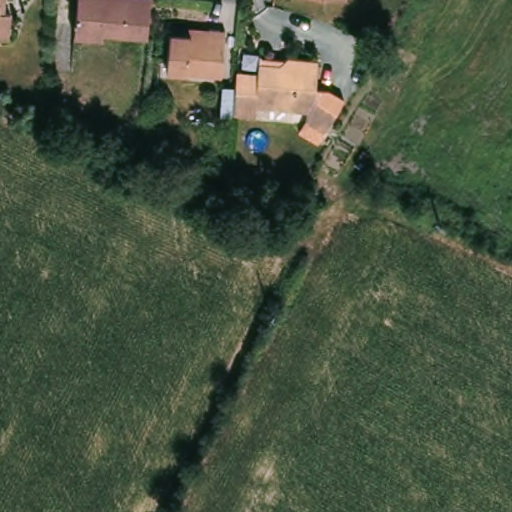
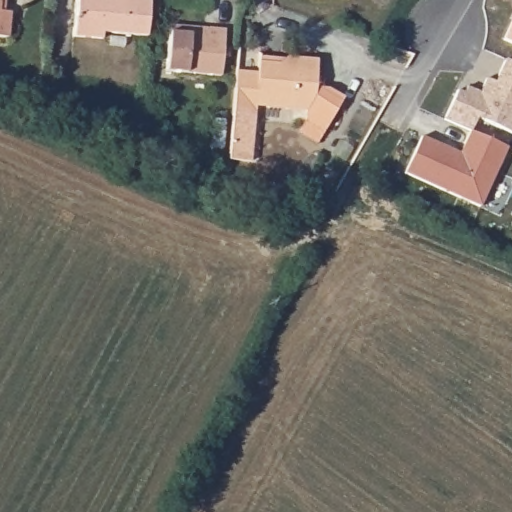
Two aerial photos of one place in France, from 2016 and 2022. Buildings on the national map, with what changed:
unchanged [(2,2),(1,10),(12,12),(10,36),(0,35),(0,0),(7,0),(7,3),(2,2)]
unchanged [(146,37),(102,32),(101,39),(74,37),(77,0),(150,0),(149,5),(146,37)]
new [(512,49),(501,44),(512,20),(512,49)]
unchanged [(209,32),(210,25),(224,27),(220,75),(166,70),(170,29),(209,32)]
unchanged [(306,112),(254,107),(253,117),(231,115),(235,71),(256,73),(257,62),(278,64),(286,57),(316,61),(313,88),(326,89),(341,98),(327,124),(323,131),(305,121),(306,112)]
new [(460,98),(463,92),(476,98),(482,84),(491,87),(501,65),(512,70),(512,135),(510,140),(473,123),(466,137),(465,137),(440,125),(453,96),(460,98)]
new [(417,142),(455,159),(465,137),(466,137),(502,153),(475,212),(401,178),(417,142)]

